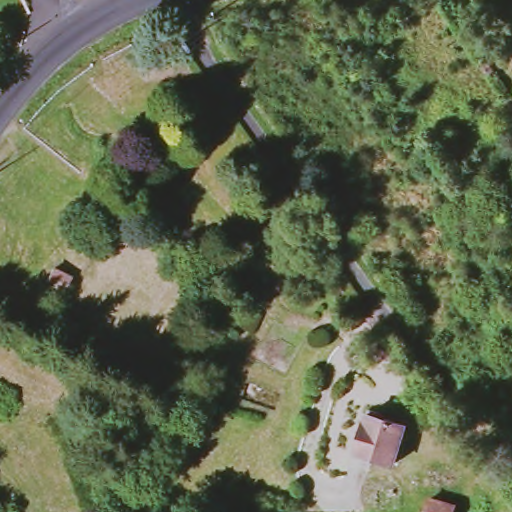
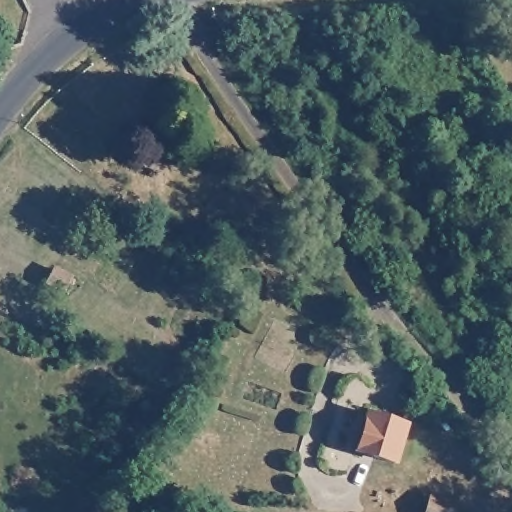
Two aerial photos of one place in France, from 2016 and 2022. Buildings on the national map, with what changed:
unchanged [(48,287),(56,271),(73,281),(63,296),(48,287)]
unchanged [(350,454),(364,412),(404,426),(391,468),(350,454)]
unchanged [(457,505),(455,512),(427,512),(433,496),(457,505)]

